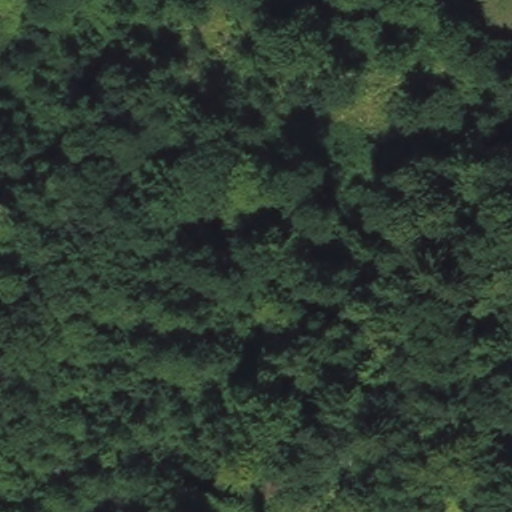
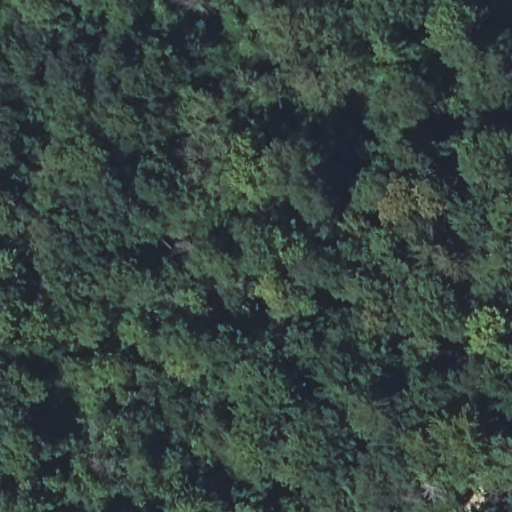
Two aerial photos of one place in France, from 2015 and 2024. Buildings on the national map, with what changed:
unchanged [(471,103),(451,129),(415,104),(433,78),(471,103)]

